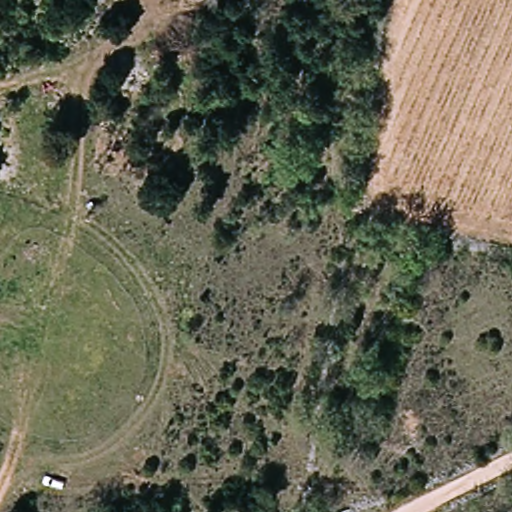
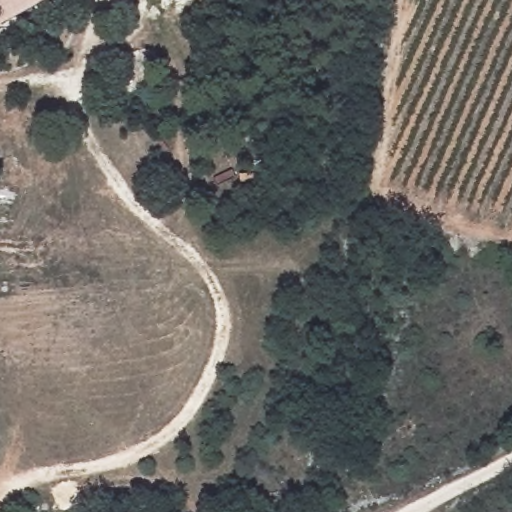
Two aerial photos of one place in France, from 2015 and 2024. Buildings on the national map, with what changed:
new [(0,27),(0,0),(51,0),(0,27)]

